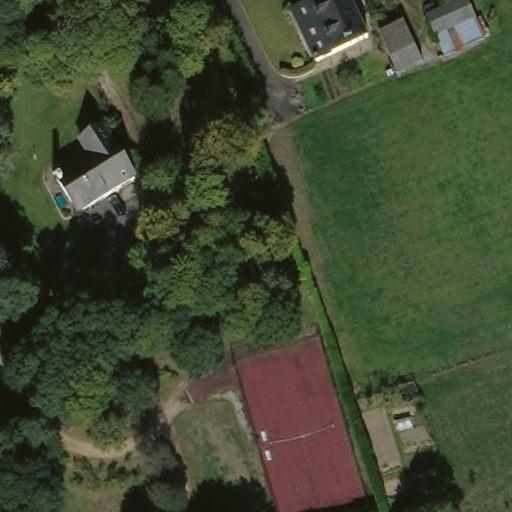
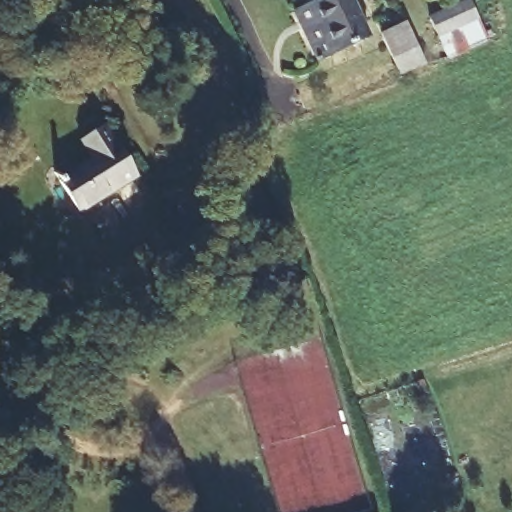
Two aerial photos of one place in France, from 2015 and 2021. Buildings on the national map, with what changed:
unchanged [(357,0),(373,33),(320,59),(295,10),(300,5),(311,0),(357,0)]
unchanged [(470,0),(490,40),(452,56),(432,14),(462,0),(470,0)]
unchanged [(114,121),(144,175),(84,206),(65,173),(100,154),(90,135),(114,121)]
unchanged [(219,353),(197,361),(182,321),(200,315),(205,313),(219,353)]

